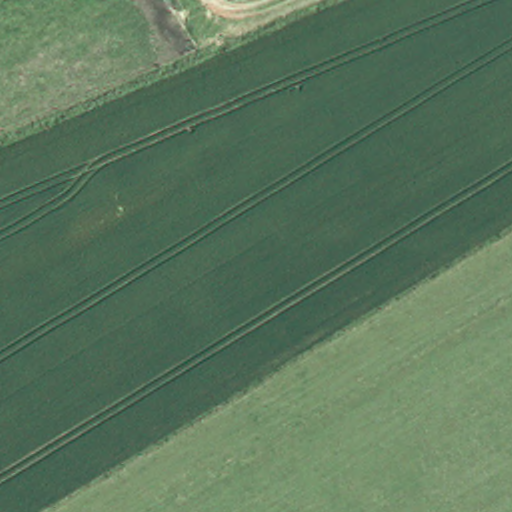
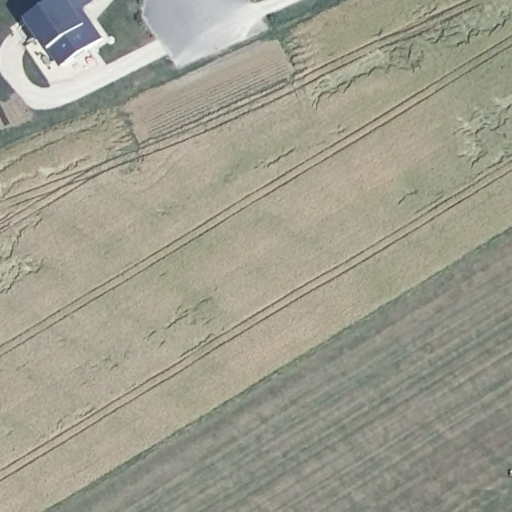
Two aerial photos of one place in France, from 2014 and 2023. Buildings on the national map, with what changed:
new [(107,38),(65,66),(53,49),(31,18),(56,0),(97,0),(85,8),(107,38)]

